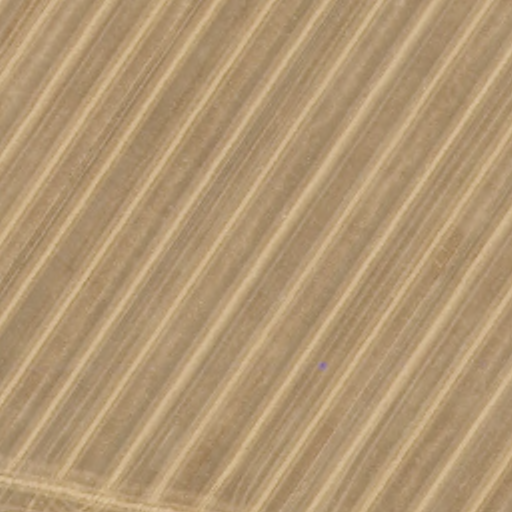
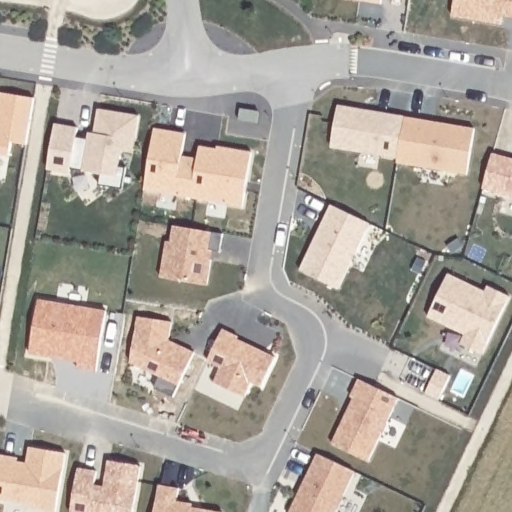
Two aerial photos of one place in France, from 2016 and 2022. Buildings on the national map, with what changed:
new [(355,0),(380,0),(380,4),(355,0)]
new [(456,0),(512,0),(512,12),(504,10),(502,22),(453,15),(456,0)]
new [(0,93),(31,99),(25,145),(12,144),(10,156),(0,155),(0,96),(0,93)]
new [(475,128),(467,174),(397,162),(399,157),(332,147),(338,105),(475,128)]
new [(78,127),(77,136),(89,139),(90,131),(95,134),(99,109),(139,116),(132,155),(121,152),(120,168),(125,169),(122,187),(100,185),(102,174),(70,167),(70,174),(49,170),(55,124),(78,127)]
new [(512,197),(483,190),(492,152),(512,158),(512,197)]
new [(370,225),(340,288),(301,271),(331,206),(370,225)]
new [(172,241),(174,226),(212,233),(210,250),(213,250),(207,285),(160,278),(166,240),(172,241)]
new [(486,290),(489,285),(510,296),(483,355),(460,344),(465,335),(430,318),(449,273),(486,290)]
new [(171,320),(169,340),(195,352),(179,386),(132,365),(137,316),(171,320)]
new [(240,336),(237,340),(273,356),(260,388),(250,383),(244,398),(213,382),(220,367),(209,362),(223,329),(240,336)]
new [(399,398),(367,463),(332,445),(354,400),(350,397),(359,378),(399,398)]
new [(20,457),(19,460),(26,462),(29,447),(66,453),(57,512),(36,509),(37,506),(0,500),(0,455),(20,457)]
new [(355,472),(336,512),(290,512),(318,453),(355,472)]
new [(98,470),(97,483),(105,485),(107,461),(141,467),(135,512),(120,512),(118,511),(118,512),(73,512),(80,467),(98,470)]
new [(180,488),(178,500),(192,502),(191,508),(214,512),(154,512),(159,485),(180,488)]

